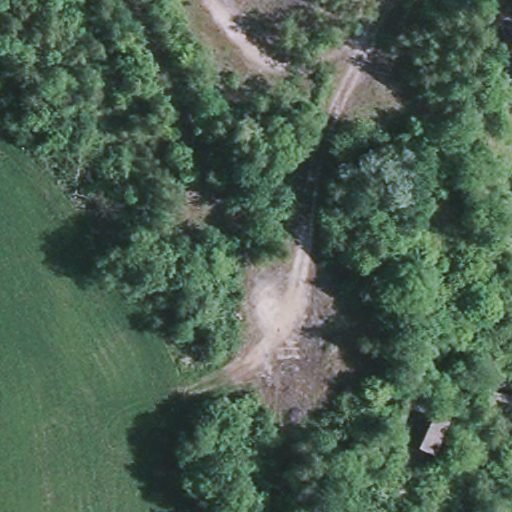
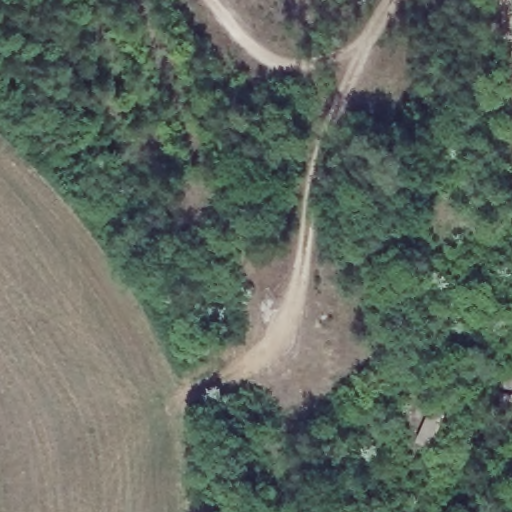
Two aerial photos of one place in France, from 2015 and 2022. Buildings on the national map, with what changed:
unchanged [(437,453),(413,449),(425,411),(445,417),(437,453)]

